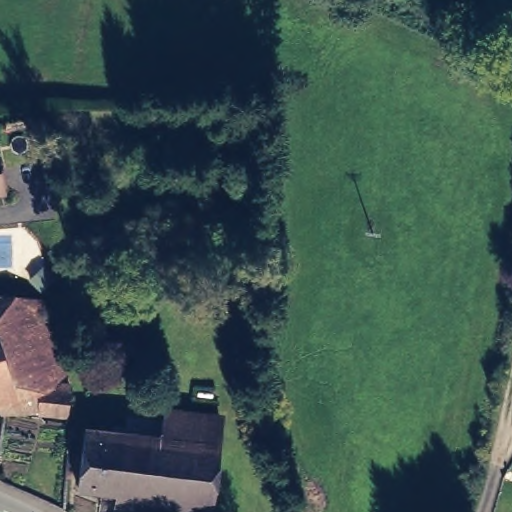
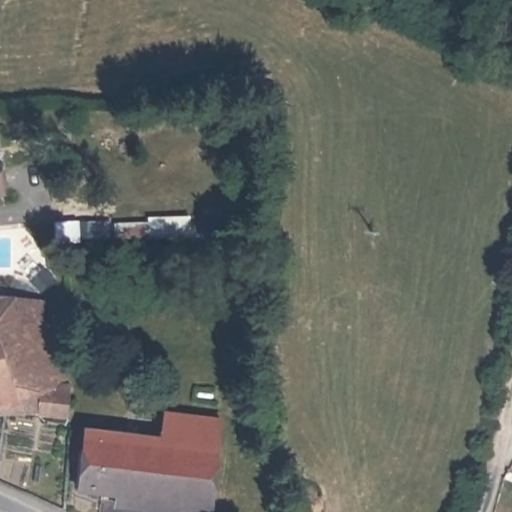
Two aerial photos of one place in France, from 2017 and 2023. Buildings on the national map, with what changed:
unchanged [(1,191),(0,192),(0,183),(1,191)]
unchanged [(71,386),(68,419),(1,417),(0,415),(0,294),(15,294),(40,297),(71,386)]
unchanged [(217,445),(158,437),(162,412),(221,419),(217,445)]
unchanged [(76,487),(83,428),(158,437),(217,445),(209,503),(208,512),(182,512),(183,500),(76,487)]

